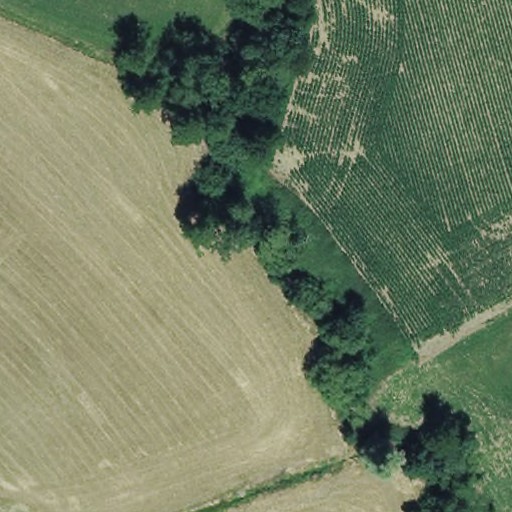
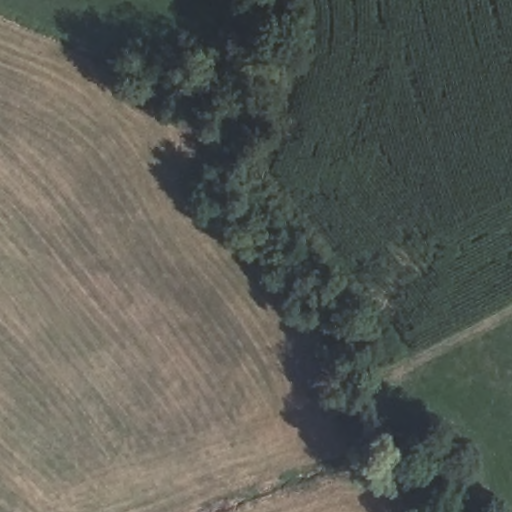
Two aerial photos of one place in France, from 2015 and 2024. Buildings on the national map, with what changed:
[]

